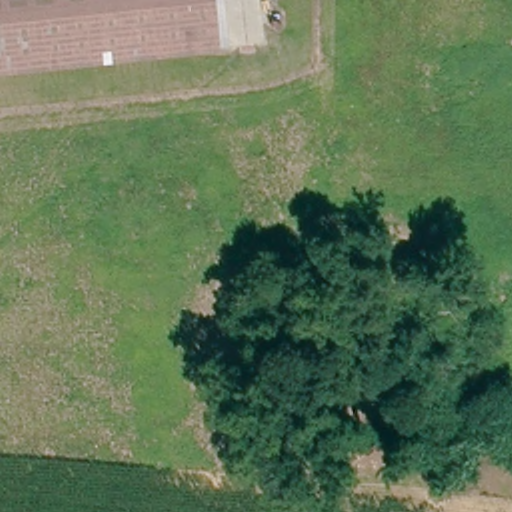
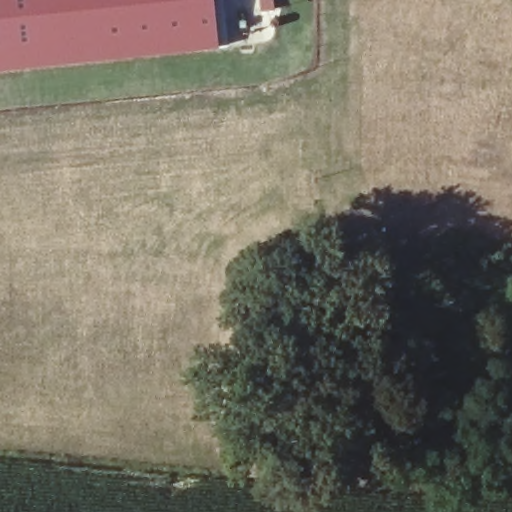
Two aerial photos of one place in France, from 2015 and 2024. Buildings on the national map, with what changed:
unchanged [(0,0),(217,0),(224,39),(0,75),(0,0)]

